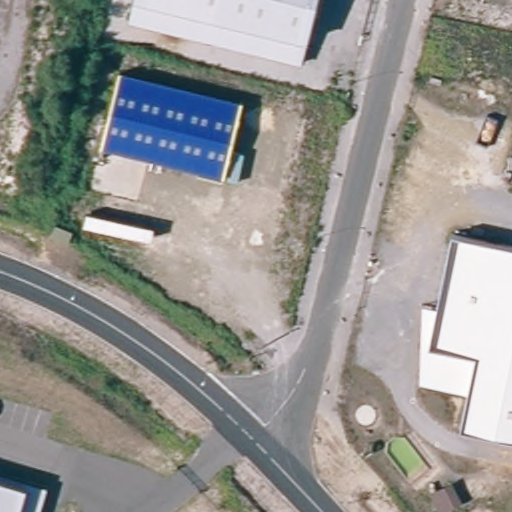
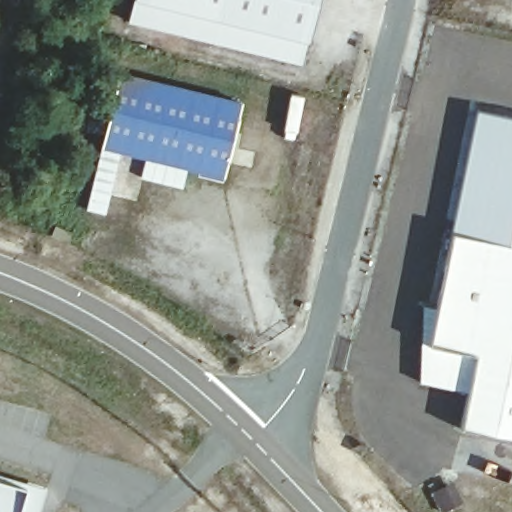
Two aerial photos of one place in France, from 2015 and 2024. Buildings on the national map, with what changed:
unchanged [(303,65),(128,21),(133,0),(318,0),(308,41),(303,65)]
unchanged [(223,179),(101,149),(119,72),(243,103),(223,179)]
new [(479,111),(512,117),(512,246),(454,235),(479,111)]
unchanged [(70,237),(54,228),(57,221),(74,229),(70,237)]
unchanged [(512,246),(512,440),(462,430),(469,392),(424,383),(434,334),(424,332),(426,307),(439,309),(454,235),(512,246)]
unchanged [(0,512),(0,479),(28,487),(21,512),(0,512)]
unchanged [(432,493),(452,482),(463,503),(441,512),(432,493)]
unchanged [(21,512),(28,487),(47,492),(41,512),(21,512)]

